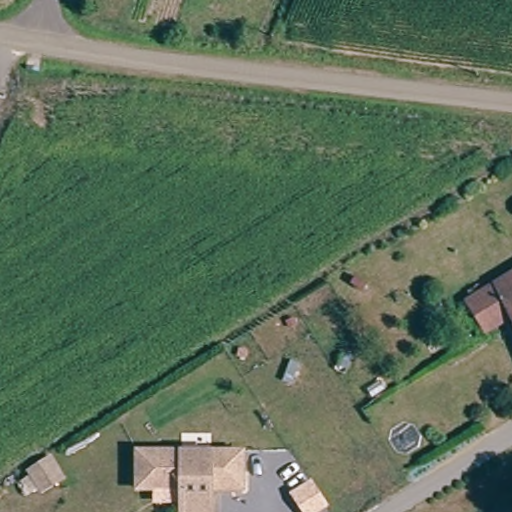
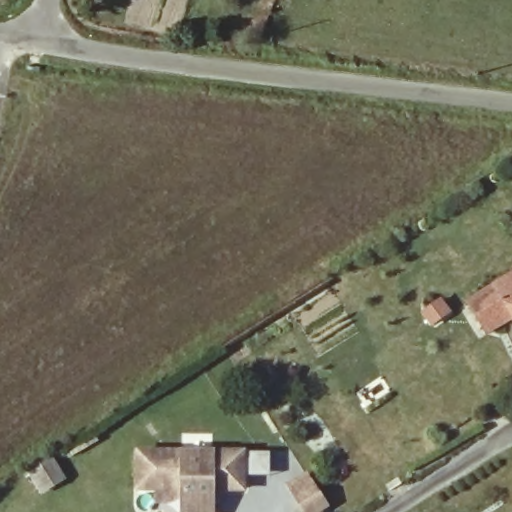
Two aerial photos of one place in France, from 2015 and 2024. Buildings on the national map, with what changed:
unchanged [(512,276),(512,316),(497,287),(512,276)]
unchanged [(470,306),(497,287),(512,316),(512,322),(489,336),(470,306)]
unchanged [(184,504),(185,489),(140,487),(142,449),(248,454),(247,491),(215,490),(215,505),(214,512),(184,512),(184,504)]

